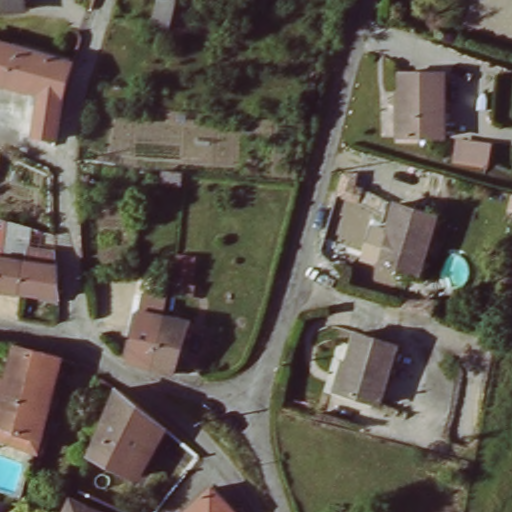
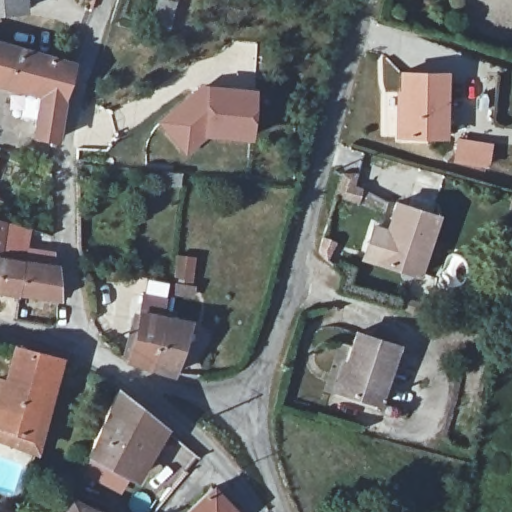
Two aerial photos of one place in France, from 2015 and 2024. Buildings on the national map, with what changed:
unchanged [(29,0),(32,10),(11,13),(0,14),(0,0),(29,0)]
unchanged [(174,0),(164,33),(146,28),(153,0),(174,0)]
unchanged [(58,91),(54,105),(53,110),(51,120),(50,127),(49,142),(34,138),(36,120),(40,98),(30,95),(0,87),(0,48),(39,59),(65,66),(58,91)]
unchanged [(403,69),(444,71),(440,135),(399,132),(403,69)]
new [(200,85),(257,90),(254,140),(205,137),(185,155),(157,121),(200,85)]
new [(458,144),(489,145),(489,162),(457,161),(458,144)]
unchanged [(380,236),(387,238),(394,209),(432,220),(419,275),(380,265),(373,263),(380,236)]
unchanged [(25,231),(21,262),(5,260),(5,263),(0,263),(0,229),(25,231)]
unchanged [(56,298),(27,294),(0,291),(0,263),(5,263),(5,260),(21,262),(31,264),(60,268),(56,298)]
unchanged [(160,319),(160,320),(158,342),(157,343),(156,346),(155,348),(153,360),(150,367),(135,362),(128,361),(134,342),(136,337),(138,332),(140,315),(161,318),(160,319)]
unchanged [(153,360),(155,348),(156,346),(157,343),(158,342),(160,320),(160,319),(161,318),(171,320),(181,321),(181,331),(181,341),(179,347),(179,348),(174,366),(172,373),(168,372),(160,370),(150,367),(153,360)]
unchanged [(342,361),(348,362),(355,332),(395,342),(380,400),(341,390),(334,388),(342,361)]
unchanged [(0,402),(1,400),(8,379),(9,374),(11,368),(15,355),(19,343),(23,345),(25,345),(44,350),(49,351),(41,377),(32,408),(26,426),(23,440),(31,443),(26,456),(0,448),(0,402)]
unchanged [(103,431),(113,408),(117,398),(121,390),(122,390),(126,395),(134,400),(148,412),(158,421),(162,425),(158,431),(150,445),(137,468),(132,475),(125,470),(102,458),(93,454),(103,431)]
unchanged [(226,417),(234,422),(229,430),(220,425),(226,417)]
unchanged [(190,509),(200,500),(211,490),(213,487),(217,491),(234,512),(187,512),(190,509)]
unchanged [(63,503),(84,512),(59,512),(63,503)]

